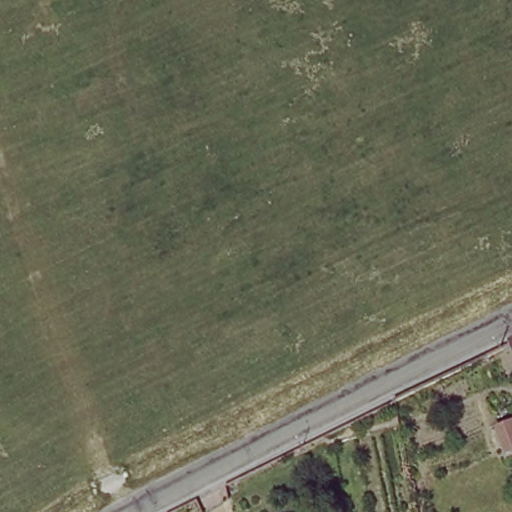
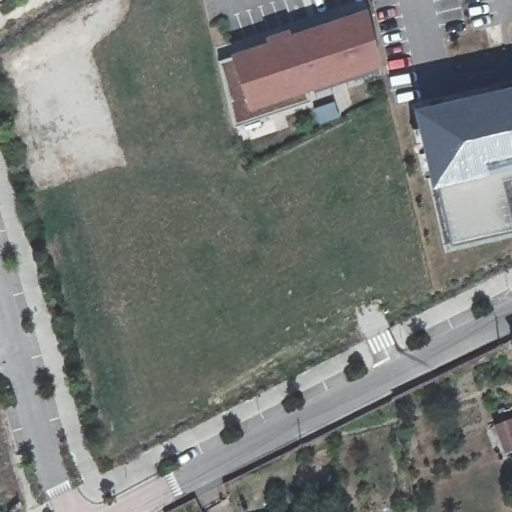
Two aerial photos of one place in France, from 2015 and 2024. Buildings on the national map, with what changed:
new [(216,60),(269,42),(268,37),(284,32),(285,38),(366,12),(376,60),(302,85),(307,103),(243,124),(231,126),(216,60)]
new [(502,179),(512,224),(512,229),(449,245),(435,191),(429,192),(409,103),(512,78),(512,176),(502,179)]
unchanged [(508,332),(512,330),(512,340),(508,332)]
unchanged [(504,425),(512,420),(512,441),(504,425)]
demolished [(478,438),(498,427),(510,449),(489,458),(478,438)]

